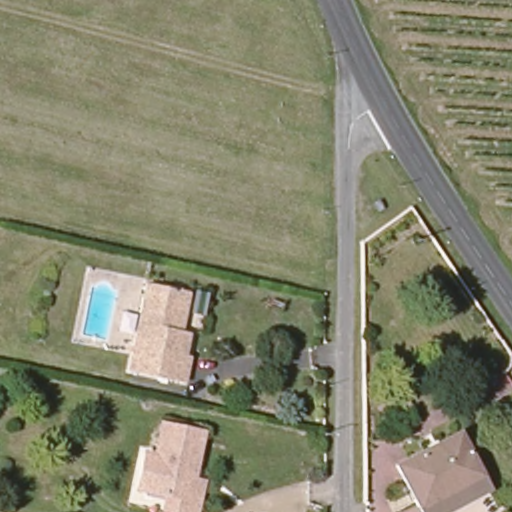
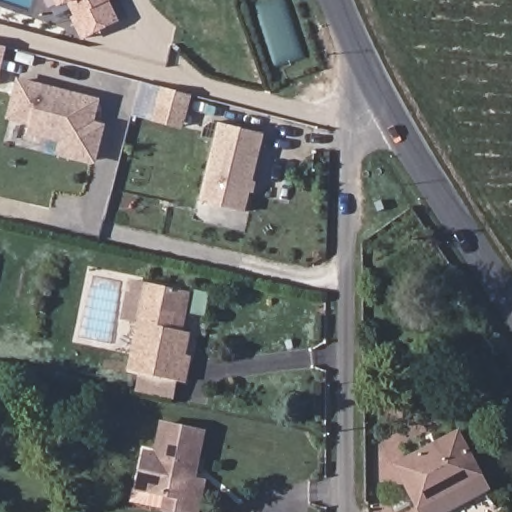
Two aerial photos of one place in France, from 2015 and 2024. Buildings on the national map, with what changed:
new [(112,1),(121,20),(82,39),(72,18),(75,17),(69,4),(58,9),(54,0),(114,0),(112,1)]
new [(0,46),(7,47),(0,74),(0,46)]
new [(28,131),(30,124),(8,118),(17,77),(101,99),(94,122),(106,125),(96,162),(61,152),(63,140),(28,131)]
new [(184,128),(154,120),(161,87),(192,95),(184,128)]
new [(247,213),(200,202),(219,122),(265,133),(247,213)]
unchanged [(187,293),(181,328),(192,331),(189,354),(192,355),(188,383),(129,372),(146,284),(187,293)]
unchanged [(151,484),(156,450),(168,451),(172,419),(213,427),(207,465),(205,481),(211,481),(207,512),(172,512),(174,489),(151,484)]
unchanged [(417,504),(393,460),(457,428),(480,470),(417,504)]
unchanged [(445,512),(421,512),(417,504),(480,470),(490,489),(445,512)]

